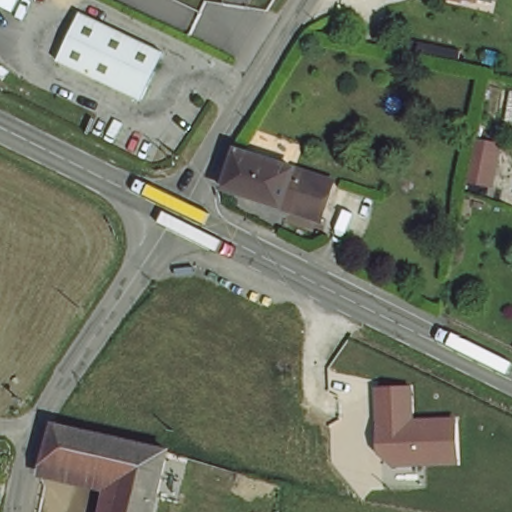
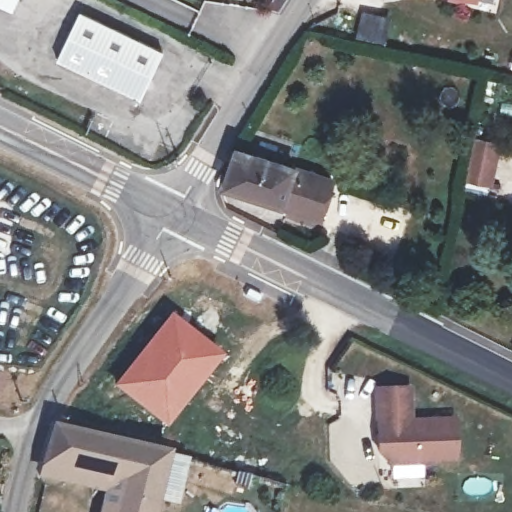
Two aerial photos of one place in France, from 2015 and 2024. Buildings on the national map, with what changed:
unchanged [(0,5),(0,0),(18,0),(12,12),(0,5)]
unchanged [(79,9),(166,48),(144,98),(57,60),(79,9)]
unchanged [(502,144),(493,187),(465,182),(475,138),(502,144)]
unchanged [(237,150),(333,181),(320,221),(228,187),(237,150)]
new [(170,311),(223,353),(165,425),(110,384),(170,311)]
unchanged [(413,387),(415,418),(455,418),(456,463),(395,466),(376,452),(375,388),(413,387)]
unchanged [(116,483),(39,465),(47,423),(163,453),(150,512),(109,512),(116,483)]

